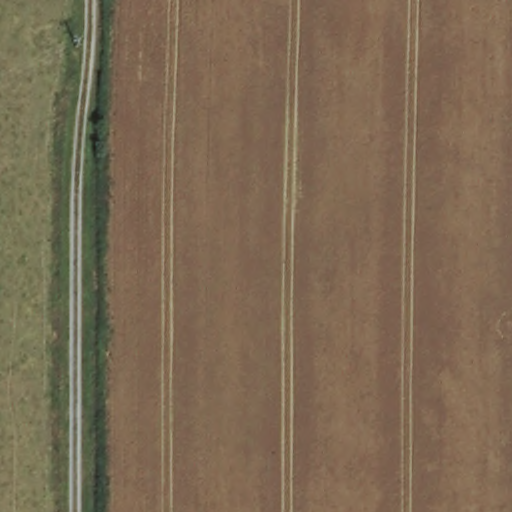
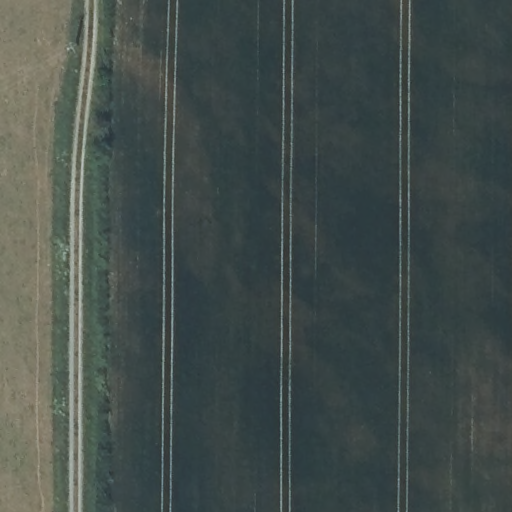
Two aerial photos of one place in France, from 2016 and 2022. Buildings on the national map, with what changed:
[]

